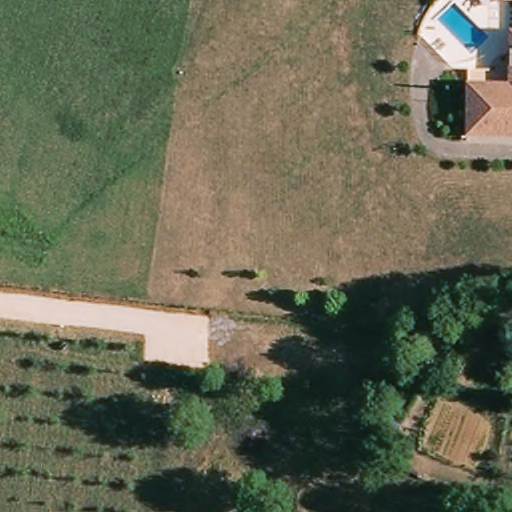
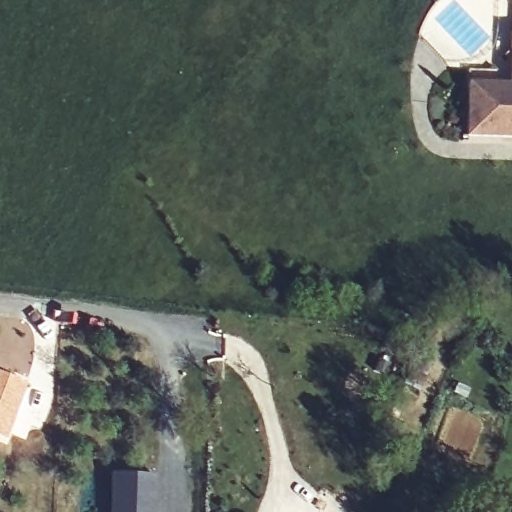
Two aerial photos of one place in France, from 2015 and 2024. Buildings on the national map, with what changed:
unchanged [(501,0),(505,0),(504,2),(501,0)]
unchanged [(465,88),(507,88),(506,69),(512,69),(512,137),(466,138),(465,88)]
new [(27,382),(5,438),(0,436),(0,372),(27,382)]
unchanged [(190,433),(180,443),(169,433),(178,423),(190,433)]
new [(109,472),(157,474),(155,512),(108,512),(109,472)]

